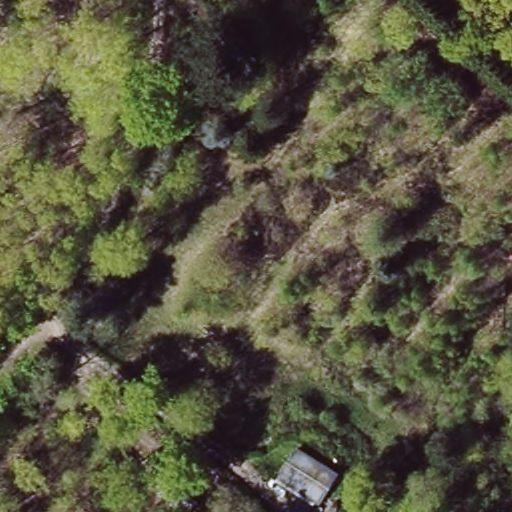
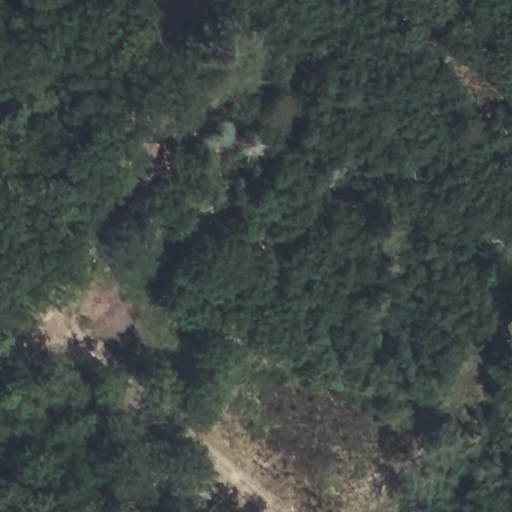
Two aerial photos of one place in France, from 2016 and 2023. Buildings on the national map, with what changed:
demolished [(278,483),(297,446),(337,467),(321,504),(278,483)]
unchanged [(202,505),(197,512),(164,512),(135,486),(157,463),(202,505)]

